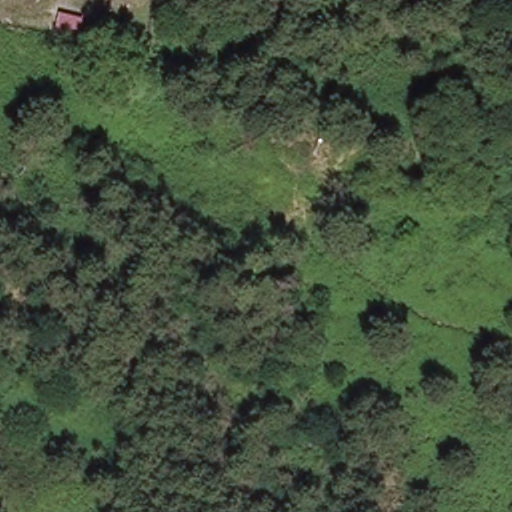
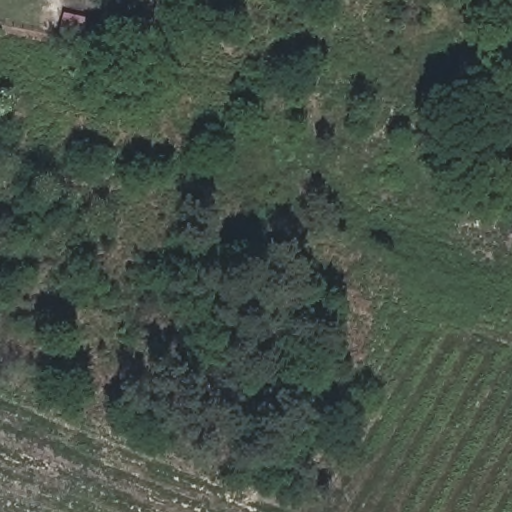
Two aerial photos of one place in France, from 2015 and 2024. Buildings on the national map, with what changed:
unchanged [(84,41),(54,34),(60,10),(89,15),(84,41)]
unchanged [(205,147),(219,121),(231,129),(219,154),(205,147)]

